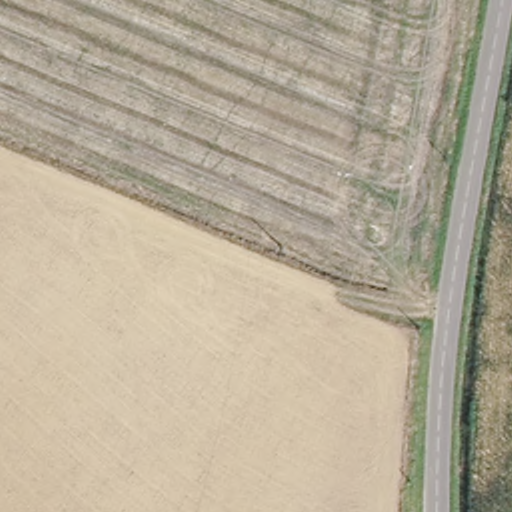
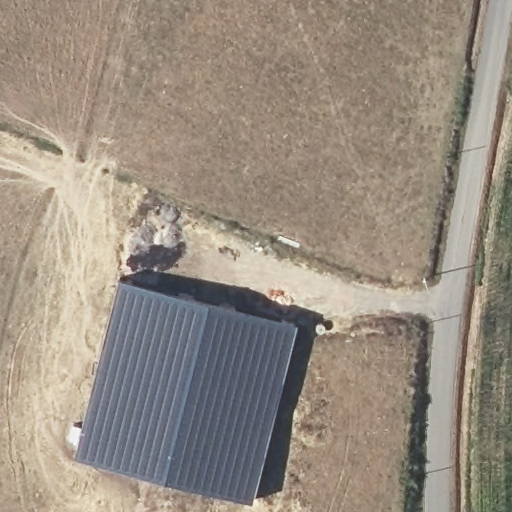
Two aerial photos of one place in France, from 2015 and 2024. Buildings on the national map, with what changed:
new [(99,342),(117,275),(213,297),(297,320),(251,498),(112,464),(72,452),(99,342)]

